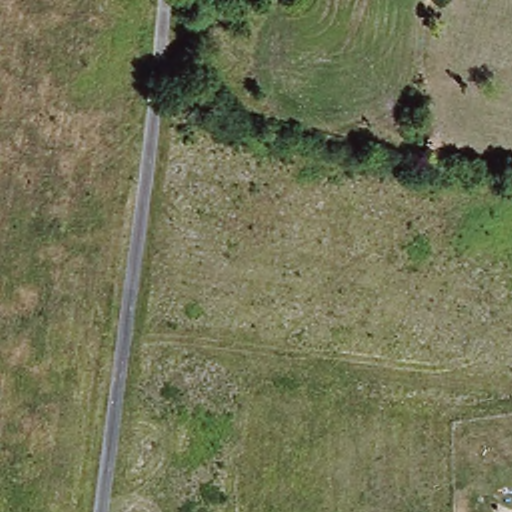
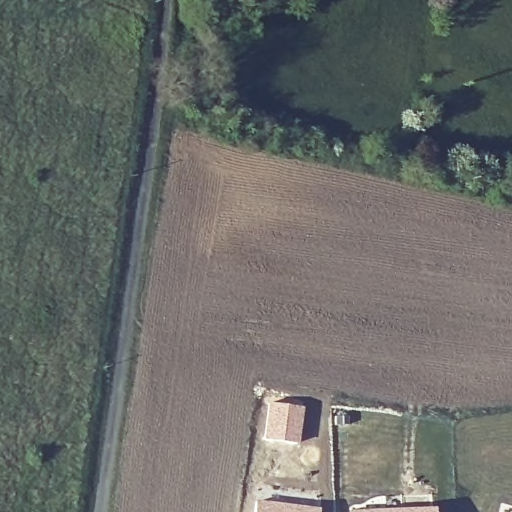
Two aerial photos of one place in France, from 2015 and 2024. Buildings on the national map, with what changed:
new [(269,401),(303,406),(297,443),(264,438),(269,401)]
new [(316,508),(316,512),(253,512),(255,500),(316,508)]
new [(433,508),(433,512),(349,512),(349,511),(433,508)]

